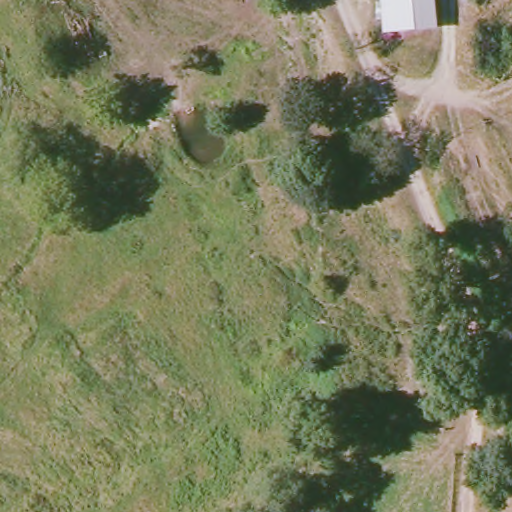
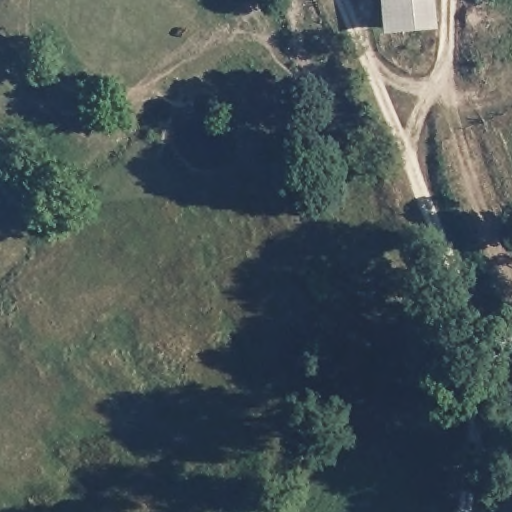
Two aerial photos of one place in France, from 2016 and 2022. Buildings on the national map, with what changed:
unchanged [(438,18),(388,22),(385,0),(436,0),(438,18)]

